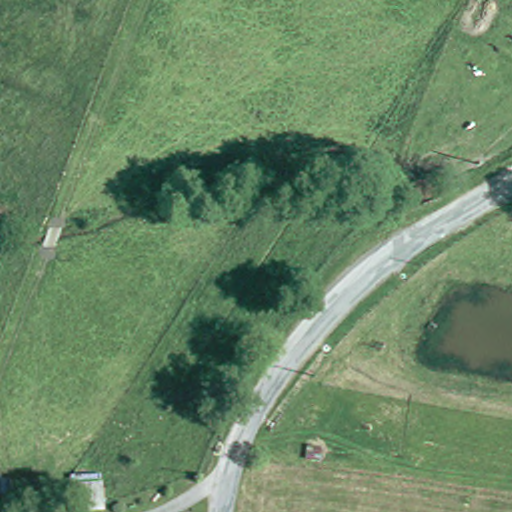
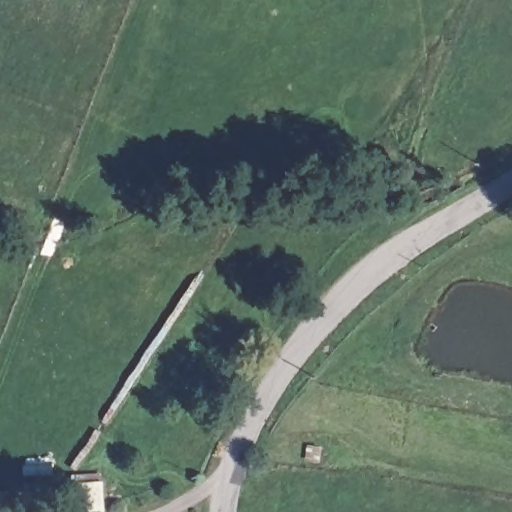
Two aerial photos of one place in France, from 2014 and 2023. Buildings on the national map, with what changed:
unchanged [(103,505),(103,510),(73,512),(72,506),(103,505)]
unchanged [(56,508),(56,512),(26,512),(26,510),(30,510),(56,508)]

